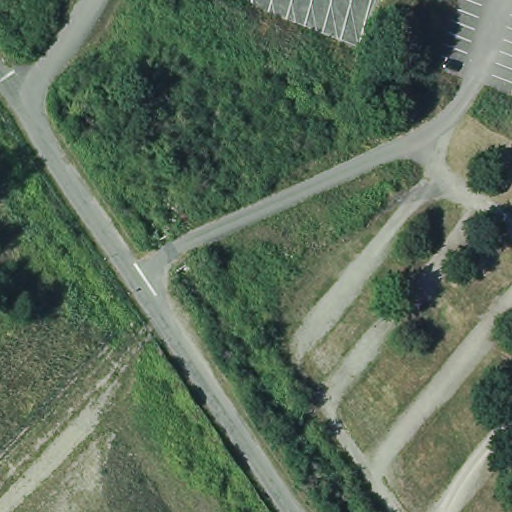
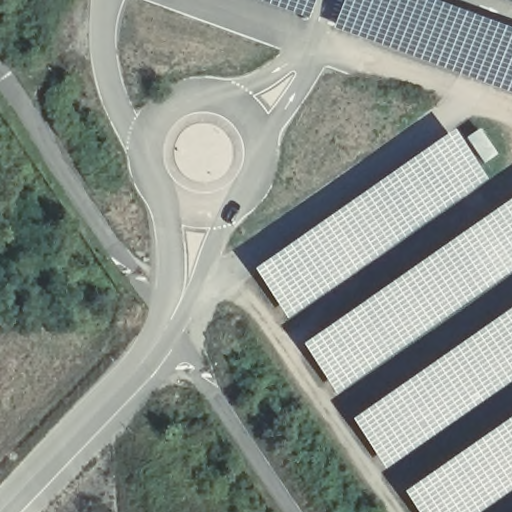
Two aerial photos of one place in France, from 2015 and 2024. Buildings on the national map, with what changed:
new [(251,0),(314,0),(304,23),(251,0)]
new [(343,0),(431,0),(512,30),(512,94),(333,27),(343,0)]
new [(506,0),(512,0),(512,3),(506,0)]
new [(448,127),(484,174),(291,322),(254,275),(448,127)]
new [(335,394),(301,345),(512,198),(512,270),(335,394)]
new [(384,468),(350,420),(512,307),(512,380),(384,468)]
new [(478,512),(416,512),(402,492),(512,416),(512,488),(478,512)]

